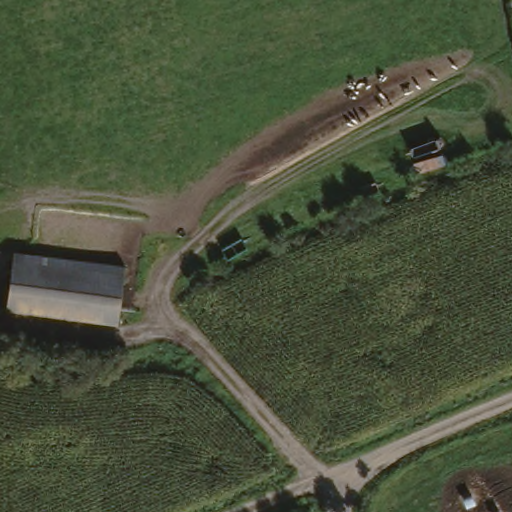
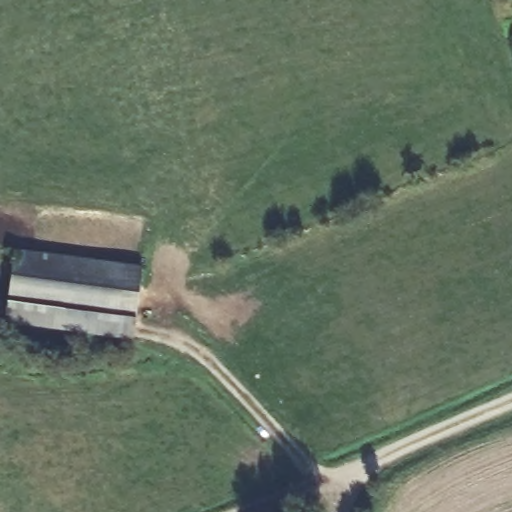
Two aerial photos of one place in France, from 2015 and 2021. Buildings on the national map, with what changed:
unchanged [(12,253),(123,267),(114,332),(4,317),(12,253)]

